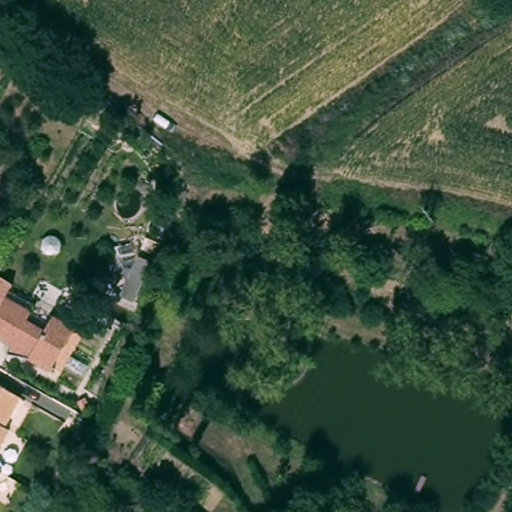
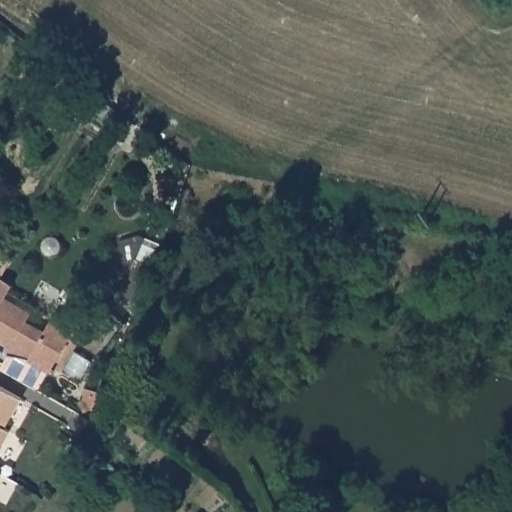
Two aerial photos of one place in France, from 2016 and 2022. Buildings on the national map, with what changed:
unchanged [(28,353),(26,353),(24,353),(22,352),(20,352),(18,351),(16,351),(14,350),(12,350),(11,350),(12,341),(0,334),(0,301),(5,291),(32,307),(28,315),(46,326),(54,311),(76,323),(53,363),(51,366),(29,354),(28,353)]
unchanged [(5,427),(11,430),(0,450),(0,385),(22,398),(5,427)]
unchanged [(68,405),(86,415),(73,436),(56,426),(68,405)]
unchanged [(0,477),(0,472),(2,473),(0,477)]

